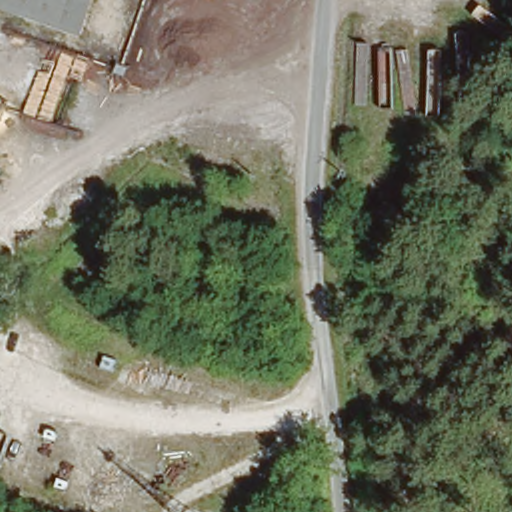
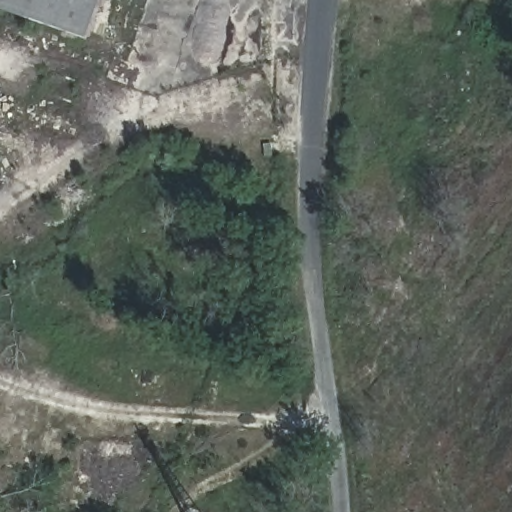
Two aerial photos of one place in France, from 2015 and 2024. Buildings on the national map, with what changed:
unchanged [(11,11),(0,7),(0,0),(89,0),(78,34),(11,11)]

